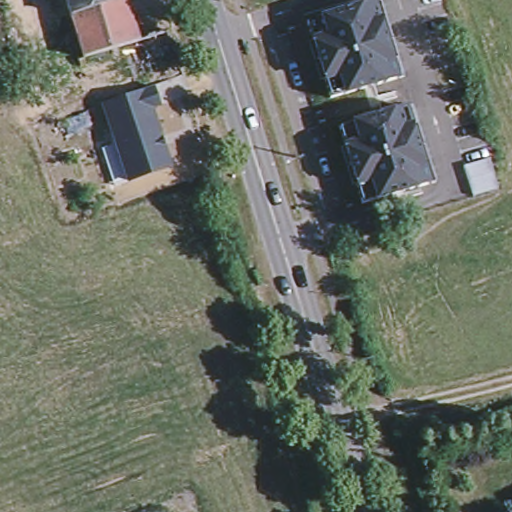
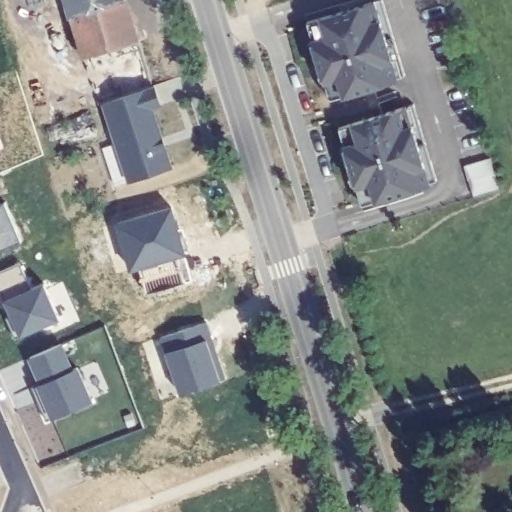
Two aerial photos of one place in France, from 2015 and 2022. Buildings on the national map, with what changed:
unchanged [(71,0),(118,0),(76,14),(71,0)]
unchanged [(130,0),(142,39),(88,56),(76,14),(118,0),(130,0)]
unchanged [(377,0),(400,80),(346,95),(345,90),(331,92),(308,15),(356,0),(377,0)]
unchanged [(101,105),(158,87),(165,107),(158,110),(175,169),(128,185),(101,105)]
unchanged [(430,164),(421,167),(427,184),(358,201),(341,145),(349,142),(341,116),(409,96),(430,164)]
new [(489,160),(497,187),(472,195),(464,167),(489,160)]
new [(4,200),(21,239),(0,248),(0,202),(4,200)]
new [(171,211),(184,258),(140,271),(130,273),(117,226),(171,211)]
new [(191,283),(145,295),(140,271),(184,258),(191,283)]
new [(19,261),(31,287),(43,282),(59,317),(15,337),(5,317),(11,314),(0,290),(0,270),(19,261)]
new [(219,378),(179,391),(160,335),(205,320),(211,336),(224,376),(219,378)]
new [(41,381),(30,355),(61,342),(72,367),(77,365),(92,399),(46,419),(38,399),(31,385),(38,382),(41,381)]

